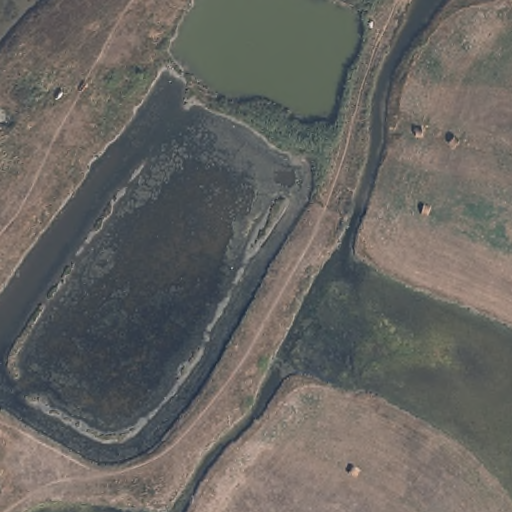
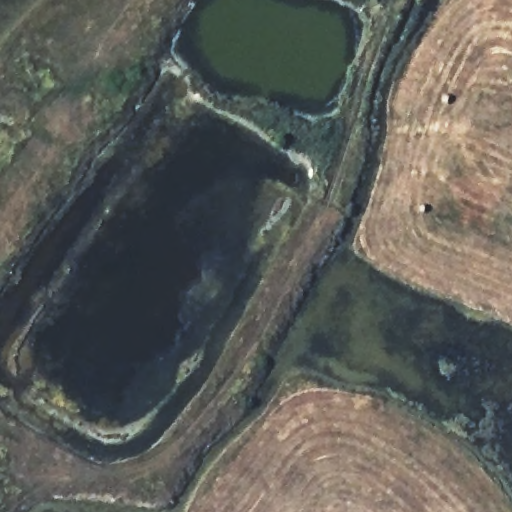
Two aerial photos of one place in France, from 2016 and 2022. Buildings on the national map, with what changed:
[]

